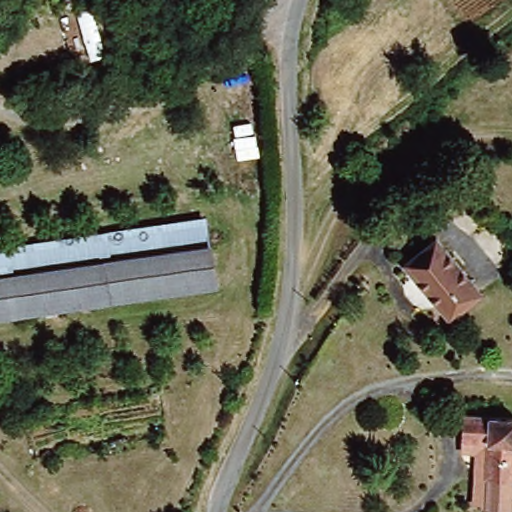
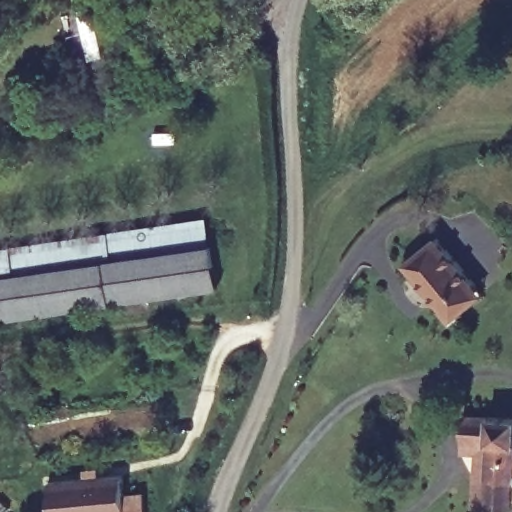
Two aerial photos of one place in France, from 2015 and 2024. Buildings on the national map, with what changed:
unchanged [(208,217),(213,247),(0,281),(0,248),(208,217)]
unchanged [(456,322),(409,265),(441,237),(491,295),(456,322)]
unchanged [(0,323),(0,281),(213,247),(216,267),(24,318),(0,323)]
unchanged [(220,284),(102,306),(24,318),(216,267),(220,284)]
unchanged [(483,338),(484,353),(464,356),(464,341),(483,338)]
unchanged [(483,495),(484,483),(471,480),(472,449),(460,447),(459,435),(459,423),(463,423),(464,410),(512,413),(512,506),(512,510),(483,507),(483,495)]
new [(151,512),(57,512),(53,478),(128,471),(130,491),(148,488),(151,512)]

